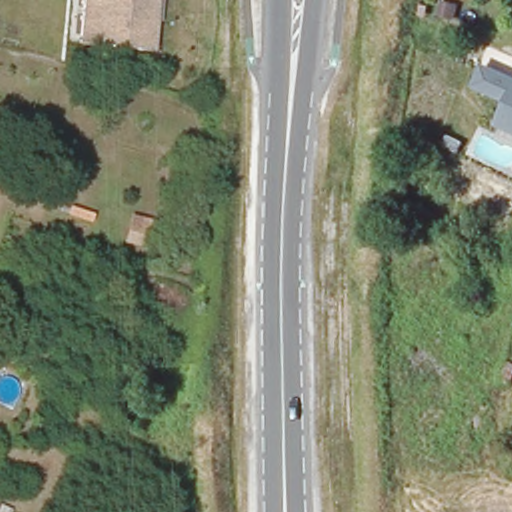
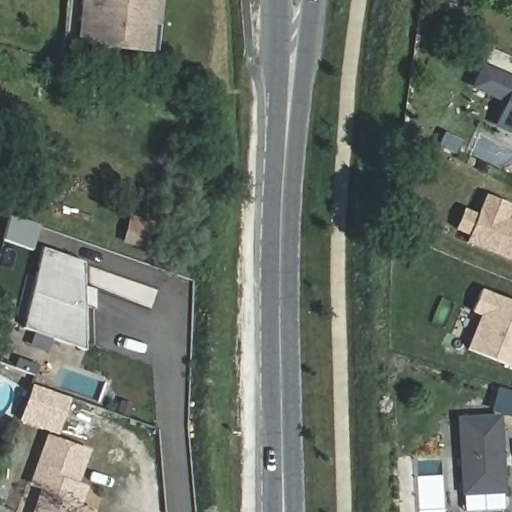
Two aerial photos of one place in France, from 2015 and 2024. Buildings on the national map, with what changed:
unchanged [(77,47),(81,0),(157,0),(152,53),(77,47)]
new [(504,102),(469,85),(480,62),(512,77),(512,135),(493,126),(504,102)]
new [(512,261),(467,242),(469,235),(455,230),(463,209),(477,215),(485,194),(512,203),(512,212),(509,218),(512,220),(512,261)]
unchanged [(134,219),(153,224),(146,248),(127,243),(134,219)]
new [(40,247),(81,261),(83,349),(21,326),(40,247)]
new [(482,289),(512,301),(512,368),(466,347),(479,316),(471,312),(482,289)]
new [(504,493),(463,494),(460,413),(503,413),(504,493)]
new [(85,512),(32,512),(41,485),(29,481),(45,435),(82,448),(71,481),(81,485),(75,503),(86,508),(85,512)]

